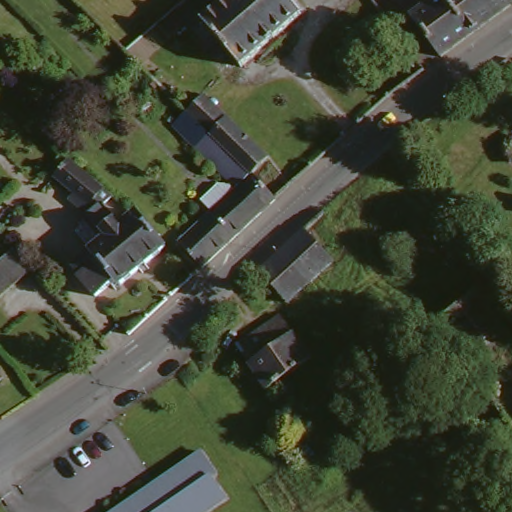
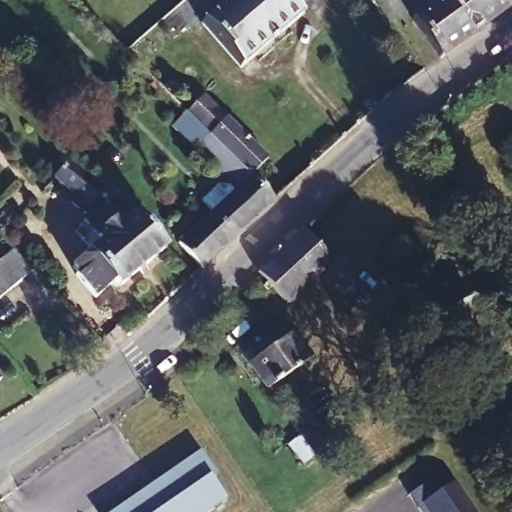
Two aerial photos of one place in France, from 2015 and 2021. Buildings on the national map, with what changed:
unchanged [(204,5),(199,0),(209,0),(204,5)]
unchanged [(297,22),(237,74),(199,29),(222,9),(220,6),(214,0),(277,0),(297,22)]
unchanged [(371,4),(368,0),(376,0),(371,4)]
unchanged [(511,15),(438,70),(410,31),(451,0),(500,0),(511,15)]
unchanged [(157,85),(161,89),(157,92),(152,88),(157,85)]
unchanged [(205,103),(269,166),(252,184),(188,120),(205,103)]
unchanged [(188,120),(252,184),(238,197),(174,132),(187,119),(188,120)]
unchanged [(110,199),(134,220),(136,221),(137,220),(167,255),(121,293),(116,287),(97,302),(77,278),(80,276),(76,270),(105,246),(82,219),(84,216),(71,205),(75,200),(55,182),(65,171),(57,164),(64,156),(70,162),(72,164),(71,165),(82,175),(110,199)]
unchanged [(292,176),(304,165),(310,171),(298,182),(292,176)]
unchanged [(238,197),(252,184),(277,207),(203,276),(197,269),(187,277),(179,268),(172,260),(181,252),(238,197)]
unchanged [(340,261),(287,308),(272,292),(268,296),(263,291),(267,288),(262,282),(259,278),(312,230),(340,261)]
unchanged [(37,270),(4,298),(0,294),(0,262),(16,247),(37,270)]
unchanged [(466,302),(485,326),(512,367),(512,428),(498,437),(435,347),(423,331),(466,302)]
unchanged [(277,321),(290,340),(247,371),(234,352),(277,321)]
unchanged [(290,340),(307,365),(265,396),(247,371),(290,340)]
unchanged [(152,485),(154,488),(192,462),(190,458),(205,448),(220,470),(215,473),(230,495),(204,512),(113,512),(135,496),(152,485)]
new [(440,490),(455,478),(477,512),(421,512),(409,494),(430,481),(440,490)]

